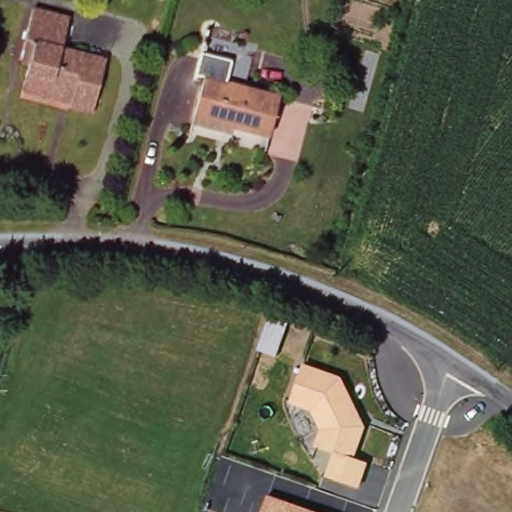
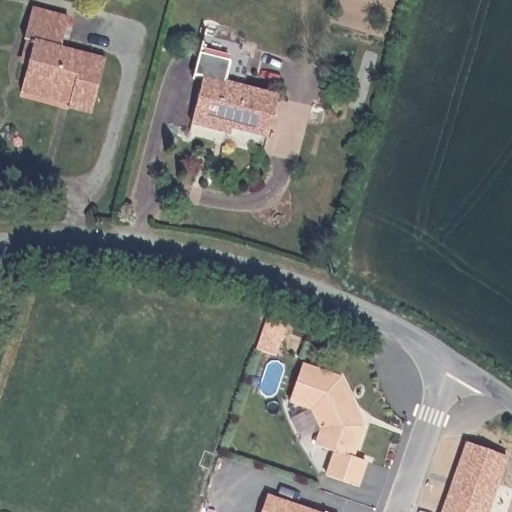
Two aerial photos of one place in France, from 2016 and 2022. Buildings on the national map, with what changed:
unchanged [(26,85),(31,66),(23,64),(28,43),(24,42),(31,11),(66,19),(60,49),(106,60),(96,111),(73,106),(74,104),(25,93),(26,85)]
unchanged [(270,154),(233,145),(233,148),(194,139),(207,79),(199,77),(204,56),(235,63),(231,83),(243,86),(284,95),(270,154)]
unchanged [(320,479),(330,455),(310,448),(317,433),(308,414),(286,402),(302,365),(341,380),(364,431),(356,458),(368,464),(356,492),(320,479)]
new [(506,456),(487,512),(443,512),(467,443),(506,456)]
unchanged [(316,512),(261,512),(268,495),(316,512)]

